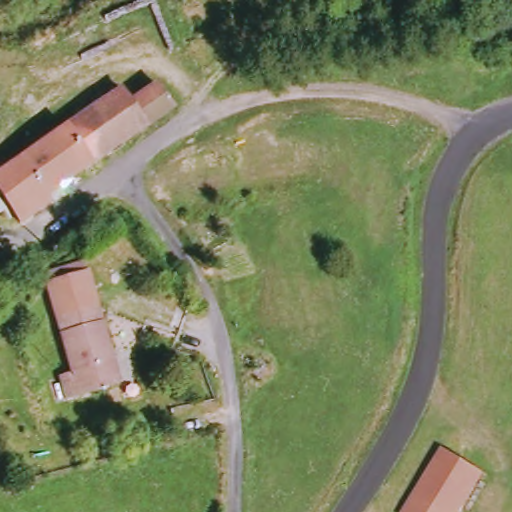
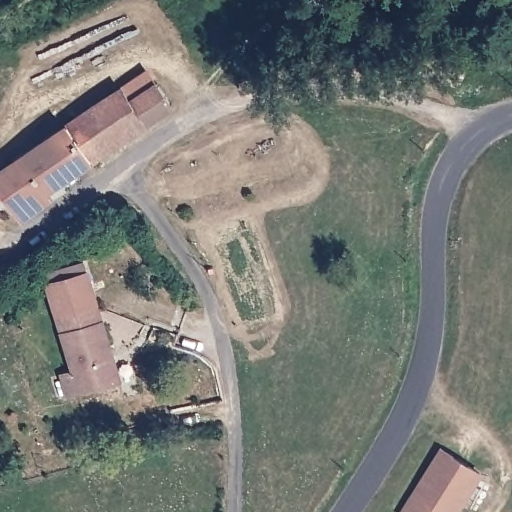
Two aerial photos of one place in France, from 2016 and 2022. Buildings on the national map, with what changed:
unchanged [(57,190),(21,211),(0,182),(0,171),(125,84),(137,97),(162,80),(181,101),(57,190)]
unchanged [(72,393),(68,375),(79,371),(53,284),(92,271),(125,377),(72,393)]
unchanged [(476,476),(454,512),(404,512),(414,495),(439,453),(476,476)]

